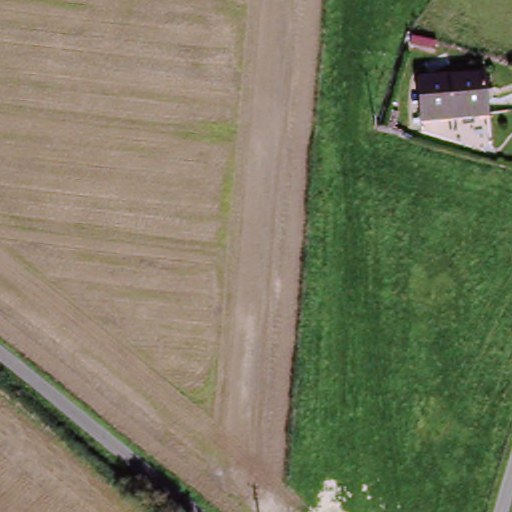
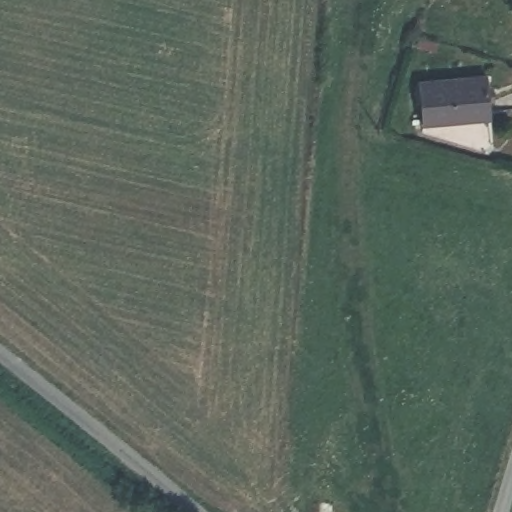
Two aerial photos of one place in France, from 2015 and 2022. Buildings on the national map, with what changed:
unchanged [(487,116),(422,122),(418,81),(484,75),(487,116)]

